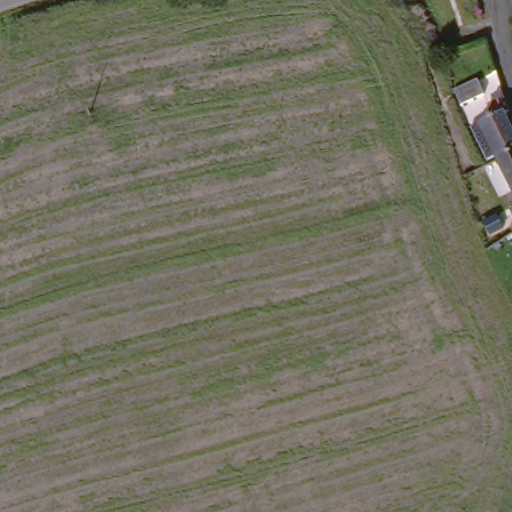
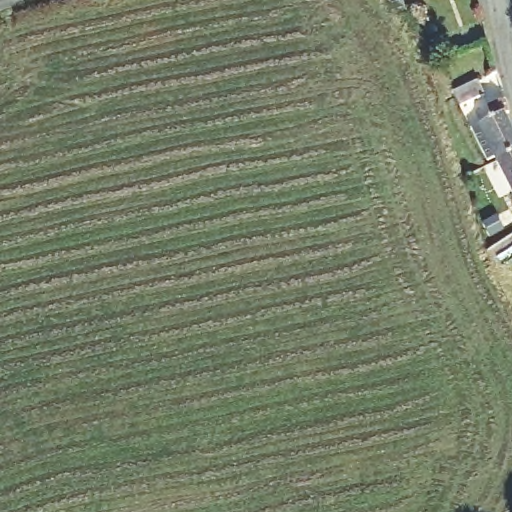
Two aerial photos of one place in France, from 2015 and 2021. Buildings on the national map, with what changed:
unchanged [(486,77),(492,91),(477,98),(471,84),(486,77)]
unchanged [(501,162),(482,126),(493,121),(489,111),(502,106),(509,121),(512,129),(512,154),(501,162)]
unchanged [(501,162),(512,154),(512,182),(501,162)]

